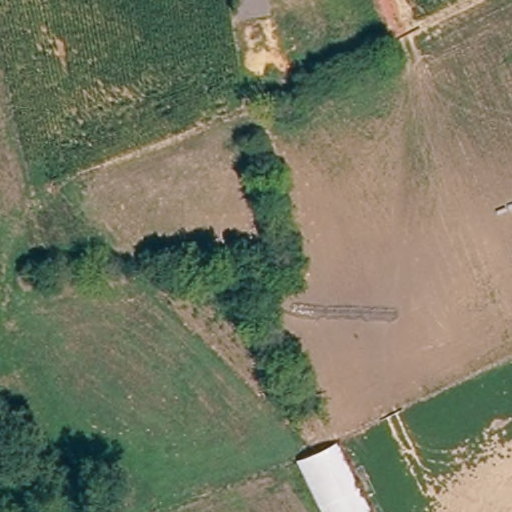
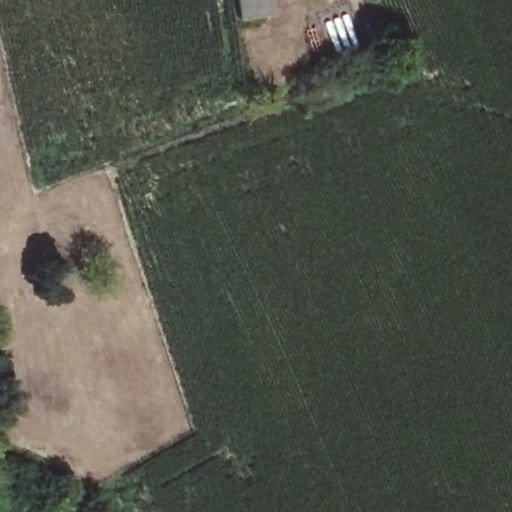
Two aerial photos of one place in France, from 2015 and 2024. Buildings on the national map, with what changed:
unchanged [(269,11),(236,17),(233,0),(267,0),(269,11)]
demolished [(370,512),(323,512),(297,461),(335,442),(370,512)]

